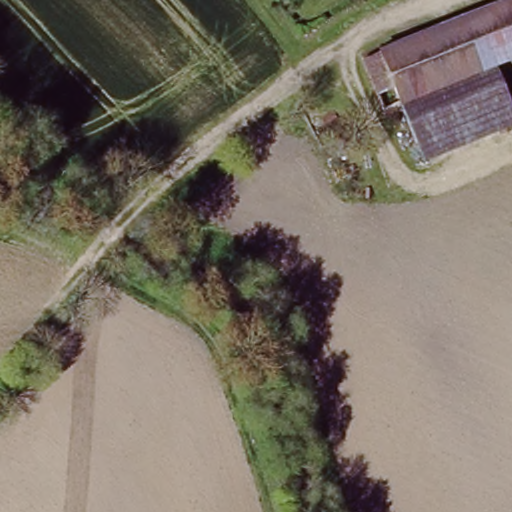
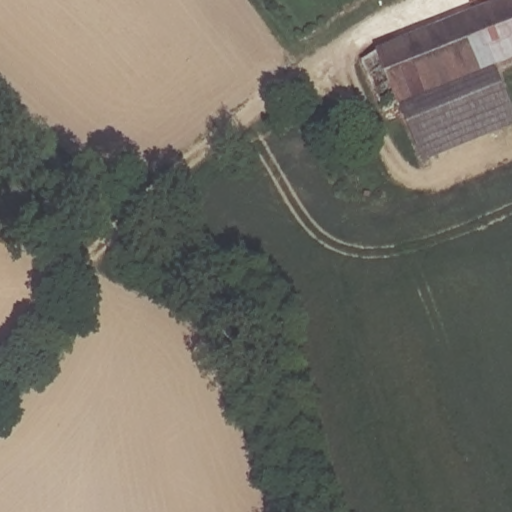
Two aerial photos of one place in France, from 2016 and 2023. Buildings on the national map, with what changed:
unchanged [(512,0),(512,63),(495,69),(512,114),(512,129),(420,164),(377,51),(508,0),(512,0)]

